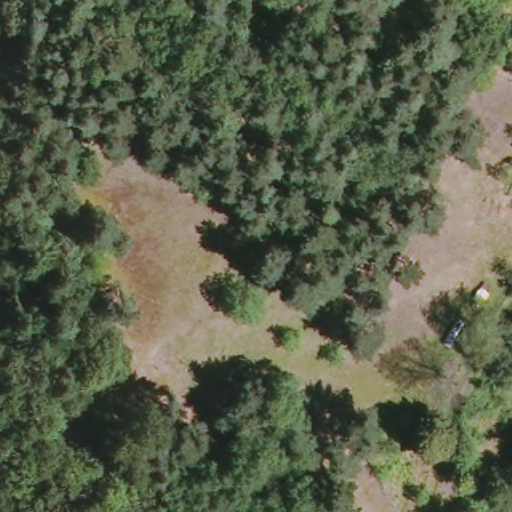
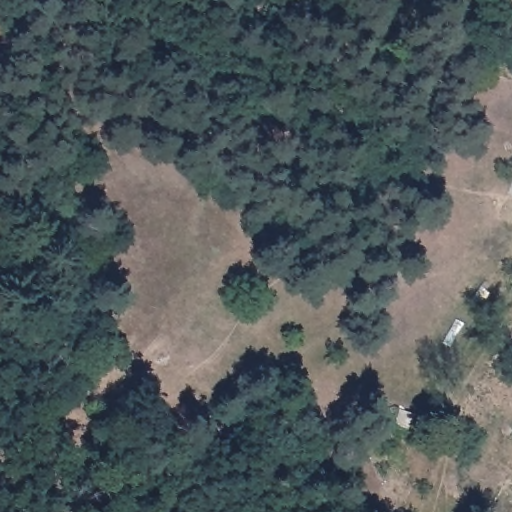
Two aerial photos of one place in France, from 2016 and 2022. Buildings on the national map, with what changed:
unchanged [(511,185),(512,183),(512,186),(511,185)]

